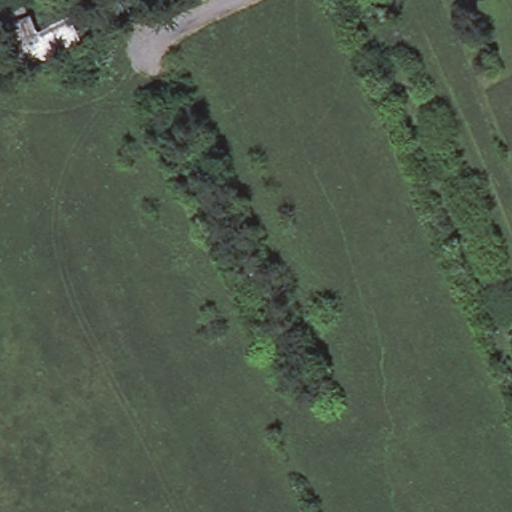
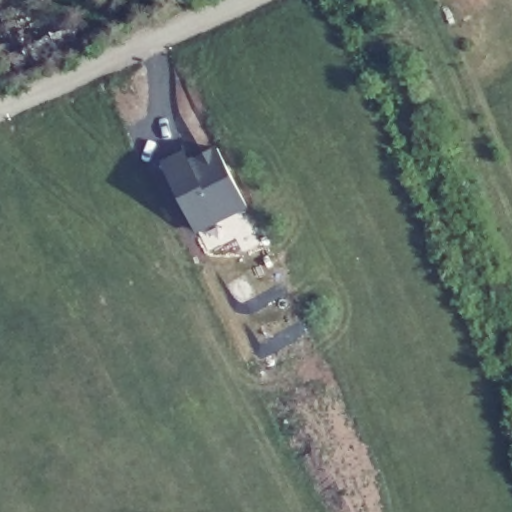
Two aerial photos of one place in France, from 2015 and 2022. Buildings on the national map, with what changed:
unchanged [(46,28),(45,25),(60,17),(65,21),(66,25),(73,25),(80,39),(20,67),(13,51),(18,48),(11,31),(1,8),(0,5),(0,0),(26,0),(26,1),(30,14),(32,15),(39,31),(46,28)]
new [(247,205),(198,230),(164,163),(185,153),(205,196),(215,190),(200,158),(219,150),(247,205)]

